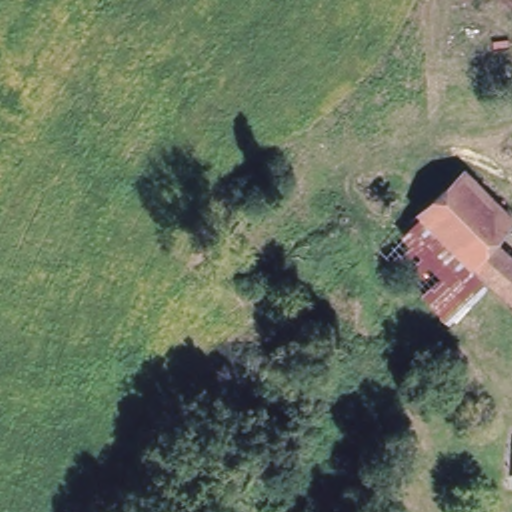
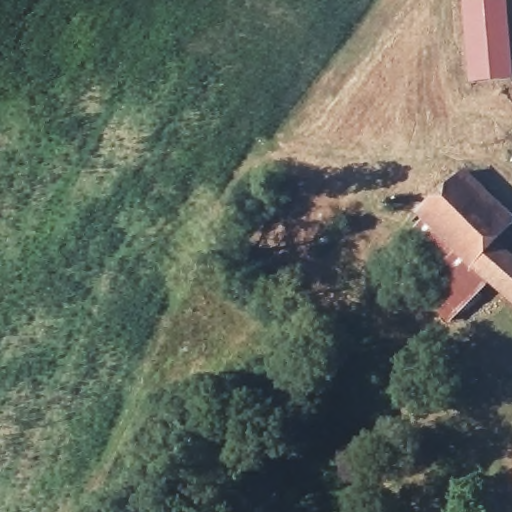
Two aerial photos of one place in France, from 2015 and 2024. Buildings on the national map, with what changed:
new [(512,57),(512,78),(469,82),(462,0),(507,0),(512,57)]
unchanged [(512,219),(493,242),(512,257),(512,301),(488,282),(481,290),(492,302),(459,331),(383,254),(466,168),(512,212),(512,219)]

